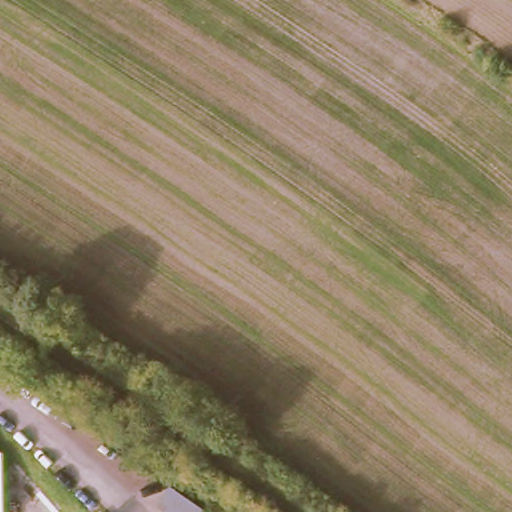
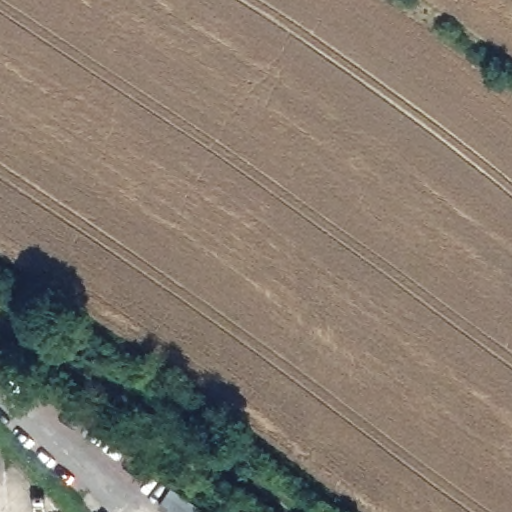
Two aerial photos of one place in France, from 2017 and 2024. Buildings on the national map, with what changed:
unchanged [(205,512),(165,512),(160,509),(170,488),(205,512)]

